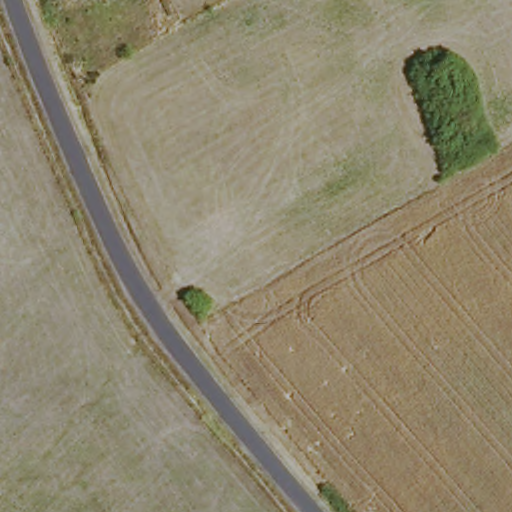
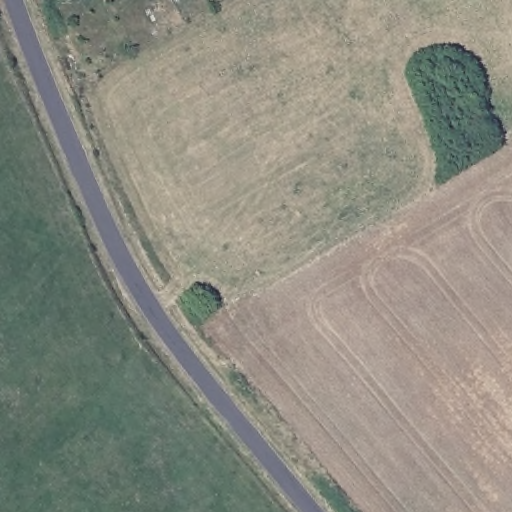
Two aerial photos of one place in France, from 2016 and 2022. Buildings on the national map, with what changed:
[]

